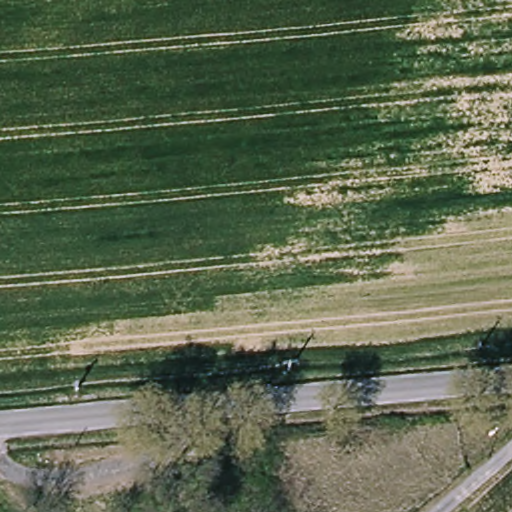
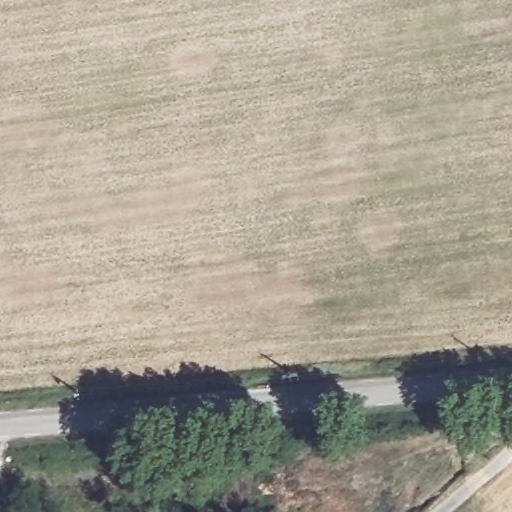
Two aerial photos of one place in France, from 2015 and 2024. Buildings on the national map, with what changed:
[]

